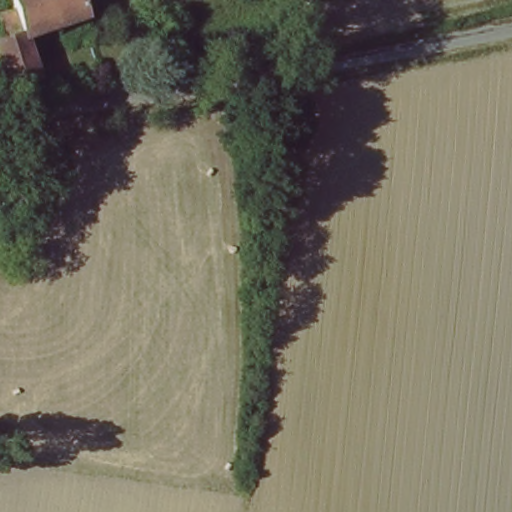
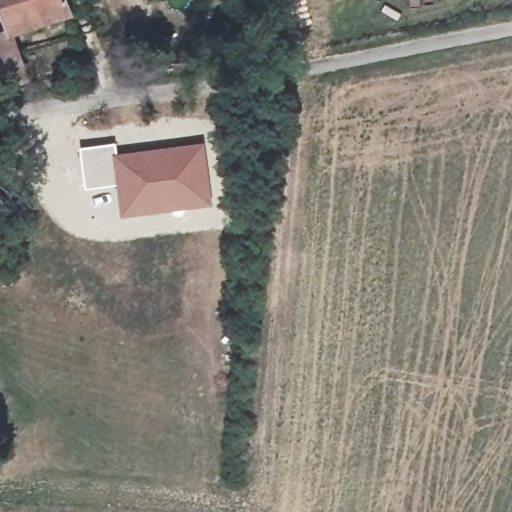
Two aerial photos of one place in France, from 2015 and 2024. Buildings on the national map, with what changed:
unchanged [(0,37),(0,0),(2,0),(11,34),(0,37)]
unchanged [(20,33),(33,76),(0,86),(0,37),(11,34),(2,0),(70,0),(75,16),(20,33)]
new [(116,143),(118,155),(204,142),(213,207),(119,220),(115,188),(84,192),(78,148),(116,143)]

